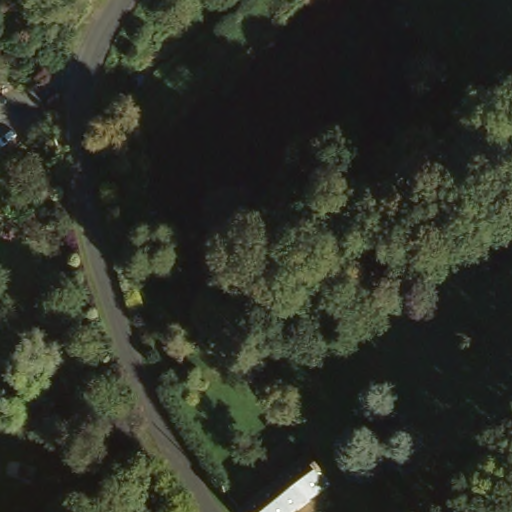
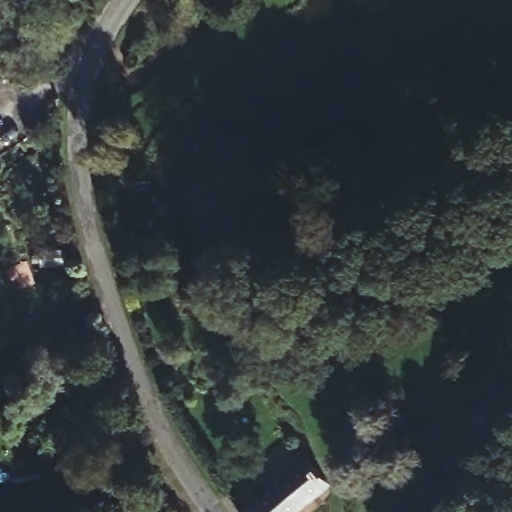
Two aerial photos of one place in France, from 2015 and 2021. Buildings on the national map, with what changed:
unchanged [(329,481),(289,512),(237,512),(309,453),(329,481)]

